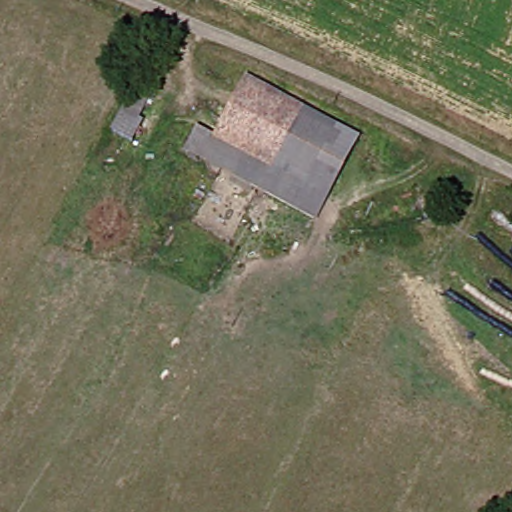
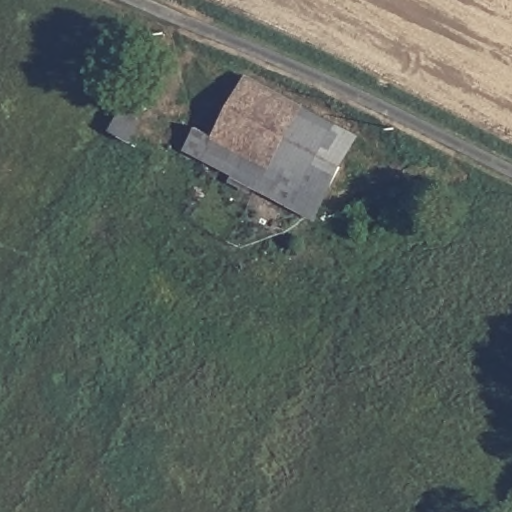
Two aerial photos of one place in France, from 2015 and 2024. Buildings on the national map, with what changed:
unchanged [(308,221),(269,201),(226,178),(197,164),(239,81),(330,129),(313,164),(331,175),(308,221)]

